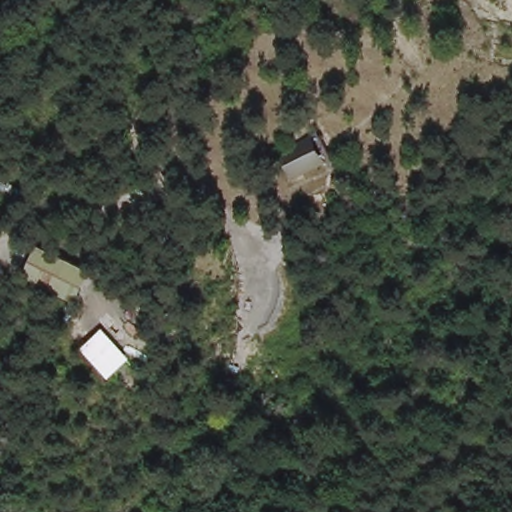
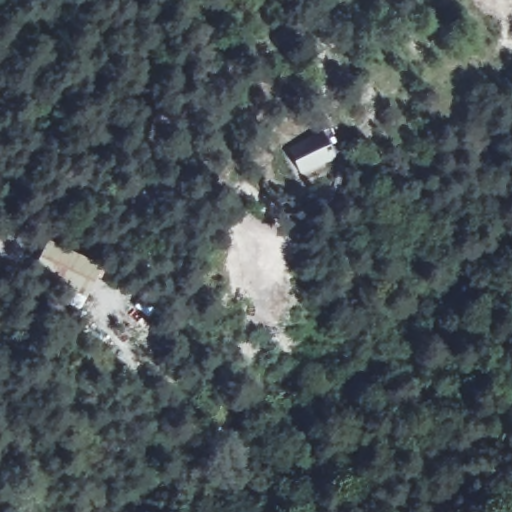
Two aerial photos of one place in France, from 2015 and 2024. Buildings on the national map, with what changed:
unchanged [(298,177),(288,153),(320,134),(333,157),(298,177)]
unchanged [(99,264),(87,301),(32,281),(45,241),(99,264)]

